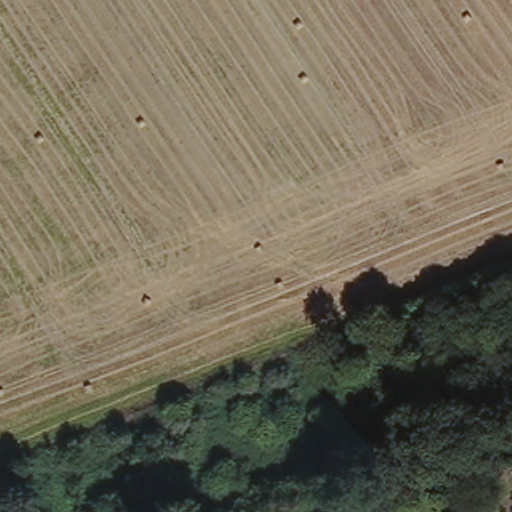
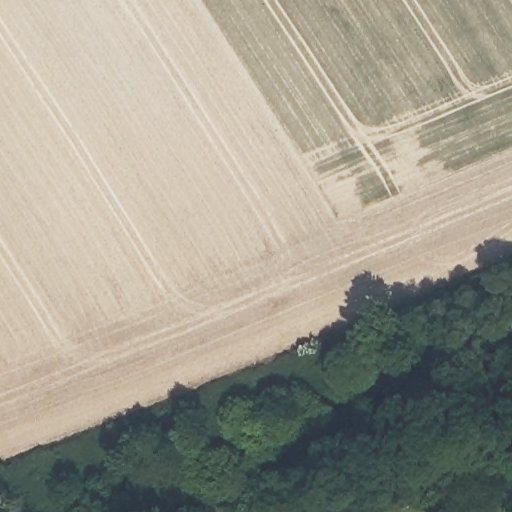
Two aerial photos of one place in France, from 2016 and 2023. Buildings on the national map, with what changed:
unchanged [(512,271),(512,273),(511,272),(512,271)]
unchanged [(435,404),(446,432),(435,436),(425,408),(435,404)]

